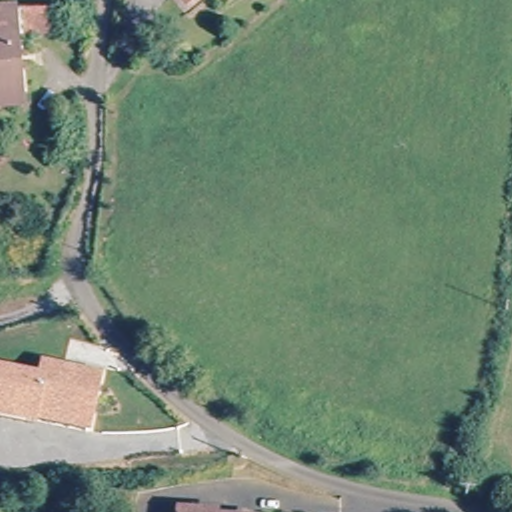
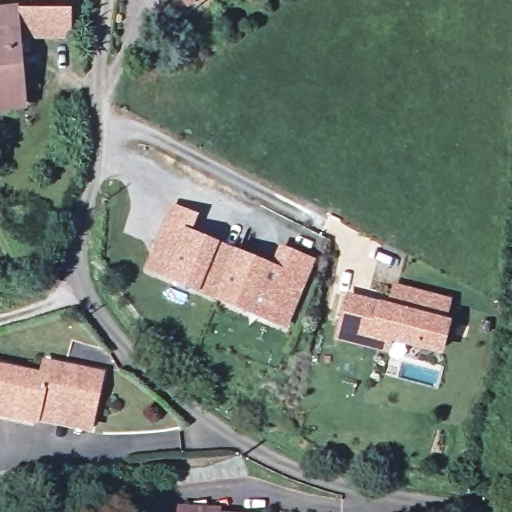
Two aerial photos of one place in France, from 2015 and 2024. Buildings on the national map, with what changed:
unchanged [(188,0),(199,0),(194,5),(188,0)]
unchanged [(0,26),(0,10),(14,9),(74,14),(74,37),(12,32),(11,26),(0,26)]
unchanged [(12,32),(20,112),(0,113),(0,26),(11,26),(12,32)]
new [(199,214),(192,231),(269,263),(278,244),(315,260),(287,327),(164,277),(144,269),(170,202),(199,214)]
new [(379,300),(389,302),(393,283),(450,299),(446,319),(452,321),(442,354),(393,342),(389,353),(334,340),(345,291),(379,300)]
unchanged [(0,410),(0,363),(43,372),(45,359),(99,370),(88,427),(0,410)]

